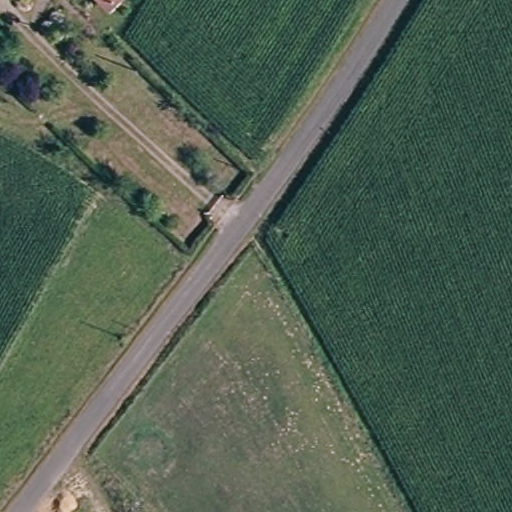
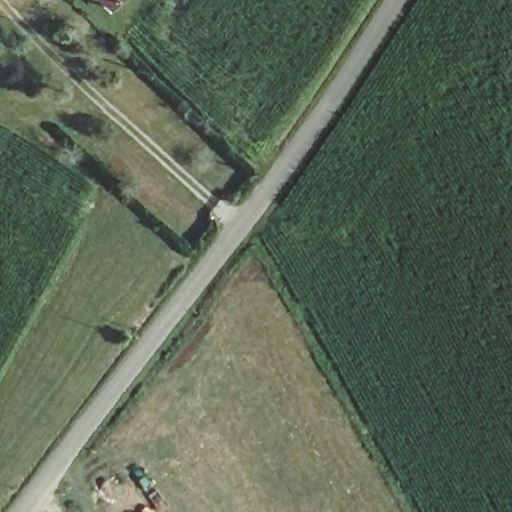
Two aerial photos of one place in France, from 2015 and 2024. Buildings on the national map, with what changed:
unchanged [(99,0),(112,0),(105,7),(99,0)]

